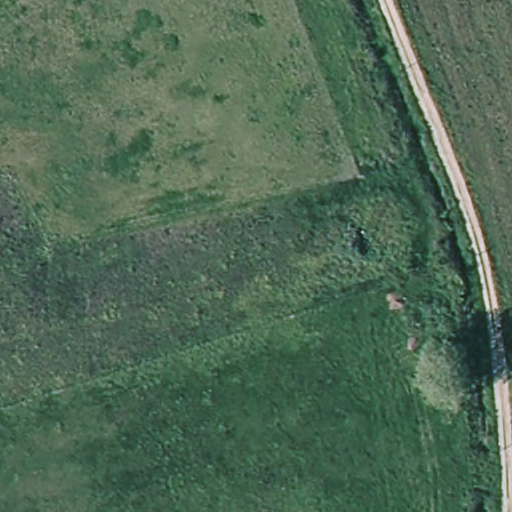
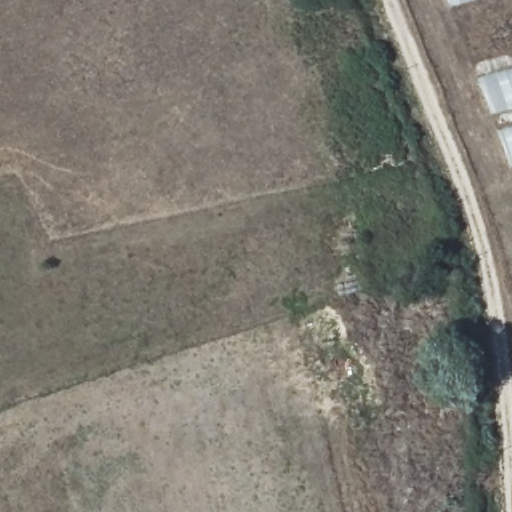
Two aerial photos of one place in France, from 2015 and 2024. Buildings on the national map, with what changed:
new [(446,0),(483,0),(450,9),(446,0)]
new [(476,81),(512,71),(512,167),(509,167),(476,81)]

